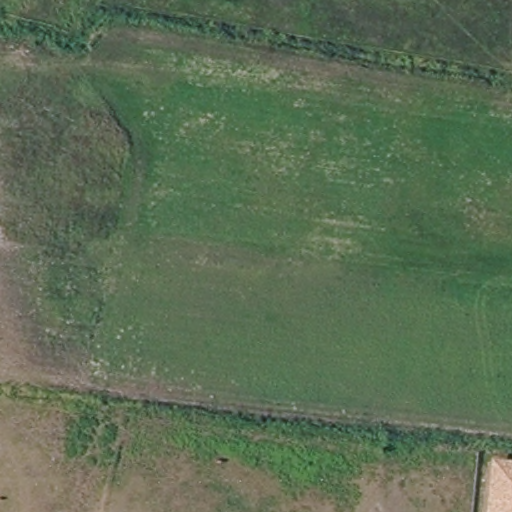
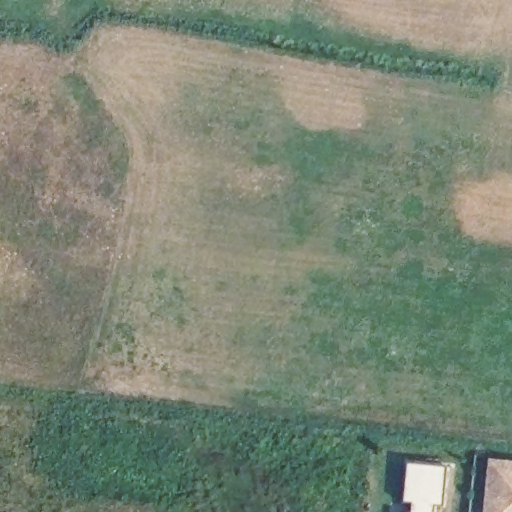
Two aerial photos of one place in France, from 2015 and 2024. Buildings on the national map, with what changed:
new [(407,502),(412,462),(452,467),(447,507),(439,506),(438,512),(415,512),(416,503),(407,502)]
unchanged [(512,464),(512,512),(491,512),(497,462),(512,464)]

